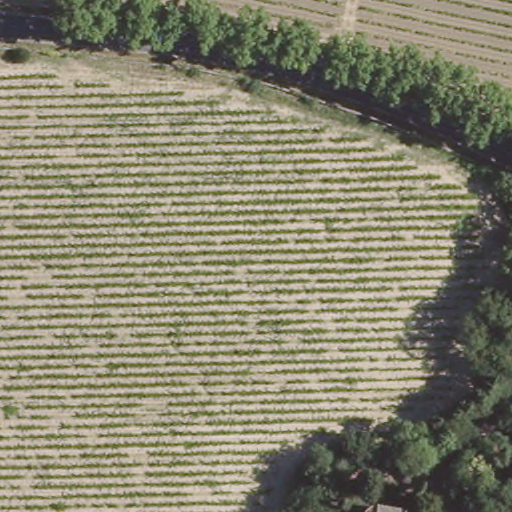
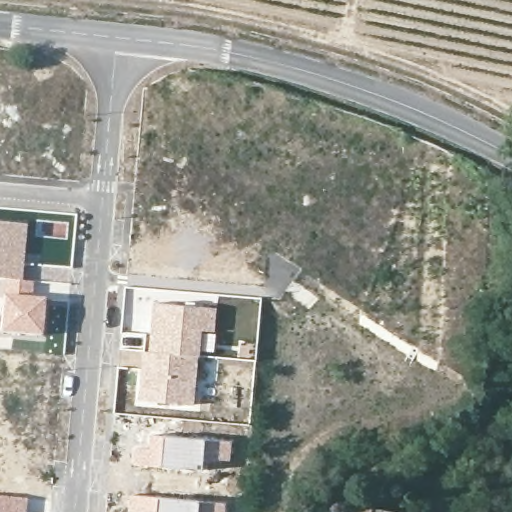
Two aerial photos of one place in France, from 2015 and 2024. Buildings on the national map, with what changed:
new [(22,281),(0,280),(0,220),(27,223),(22,281)]
new [(34,282),(33,296),(45,297),(41,337),(0,335),(0,298),(0,280),(22,281),(34,282)]
new [(195,405),(140,400),(144,352),(150,352),(153,302),(218,308),(216,332),(203,332),(201,357),(200,357),(195,405)]
new [(148,446),(150,433),(208,437),(233,440),(232,462),(206,462),(206,470),(132,465),(133,446),(148,446)]
new [(228,502),(227,512),(132,512),(129,512),(131,493),(203,500),(228,502)]
new [(25,512),(0,512),(0,496),(27,498),(25,512)]
unchanged [(363,510),(365,507),(366,503),(370,502),(373,501),(406,506),(406,512),(363,512),(363,511),(363,510)]

